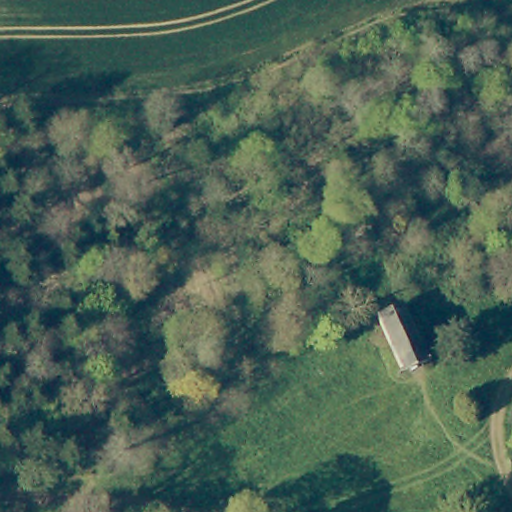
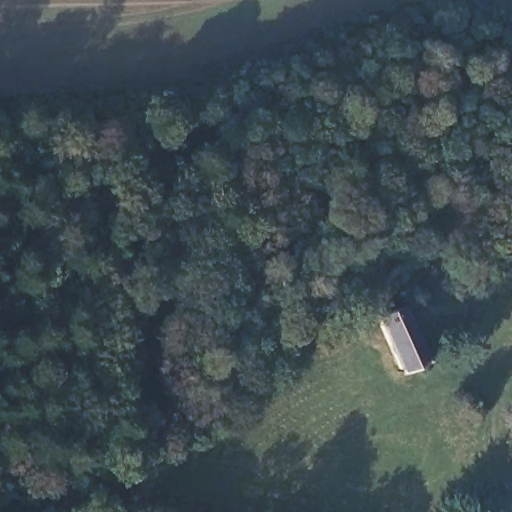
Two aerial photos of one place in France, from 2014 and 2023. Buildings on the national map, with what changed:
unchanged [(374,316),(395,308),(403,305),(409,315),(429,362),(402,373),(374,316)]

